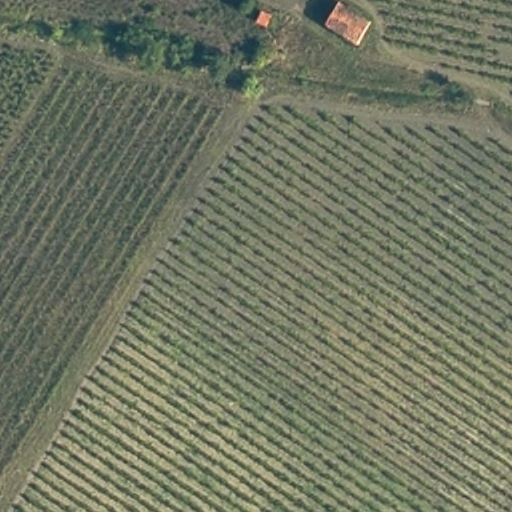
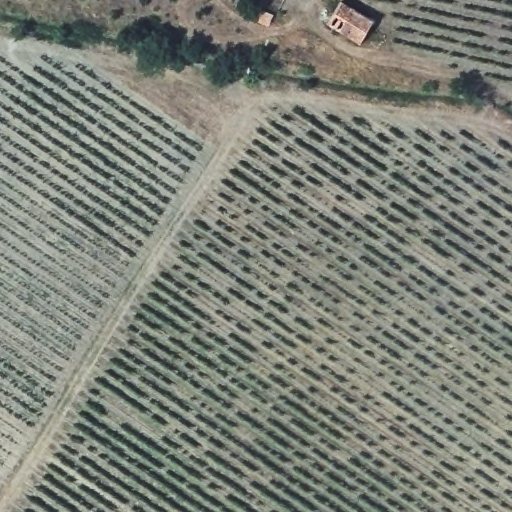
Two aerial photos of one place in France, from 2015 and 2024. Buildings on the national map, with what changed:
unchanged [(326,18),(337,0),(350,0),(372,18),(360,40),(326,18)]

